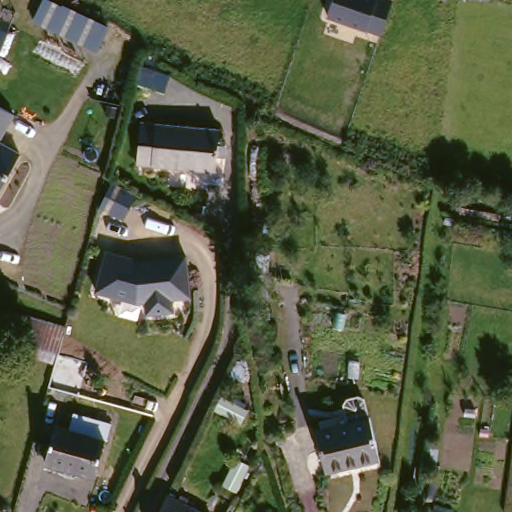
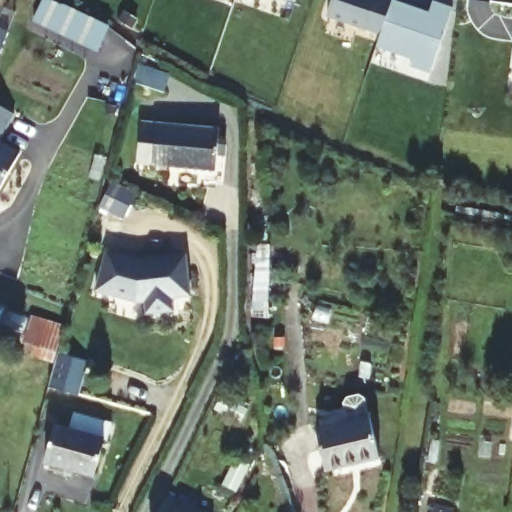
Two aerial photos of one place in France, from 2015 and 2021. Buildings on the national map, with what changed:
new [(278,0),(294,0),(292,5),(278,0)]
unchanged [(324,17),(331,0),(393,0),(381,35),(324,17)]
new [(393,0),(394,0),(430,12),(434,2),(454,9),(431,73),(412,67),(414,60),(377,47),(381,35),(393,0)]
unchanged [(98,52),(53,30),(65,6),(110,30),(98,52)]
unchanged [(36,30),(32,46),(19,42),(23,26),(36,30)]
unchanged [(0,135),(0,115),(9,121),(0,135)]
unchanged [(216,129),(213,172),(133,166),(138,122),(216,129)]
unchanged [(0,181),(0,152),(13,161),(0,181)]
unchanged [(125,185),(140,192),(127,217),(102,204),(115,180),(125,185)]
unchanged [(192,292),(174,294),(174,307),(148,310),(147,297),(138,298),(98,287),(108,247),(141,257),(187,251),(192,292)]
unchanged [(270,278),(269,303),(254,302),(255,277),(270,278)]
unchanged [(49,361),(45,351),(11,340),(14,328),(16,322),(0,318),(0,303),(23,310),(21,314),(74,332),(68,352),(64,366),(49,361)]
unchanged [(249,410),(242,423),(216,408),(223,396),(249,410)]
unchanged [(339,423),(335,405),(338,400),(349,397),(354,401),(359,418),(360,417),(371,459),(317,472),(307,431),(339,423)]
unchanged [(73,433),(77,418),(103,425),(99,441),(95,439),(86,477),(37,465),(46,427),(73,433)]
unchanged [(237,458),(250,465),(237,492),(224,485),(237,458)]
unchanged [(174,506),(177,501),(186,506),(184,510),(187,512),(157,512),(163,500),(174,506)]

